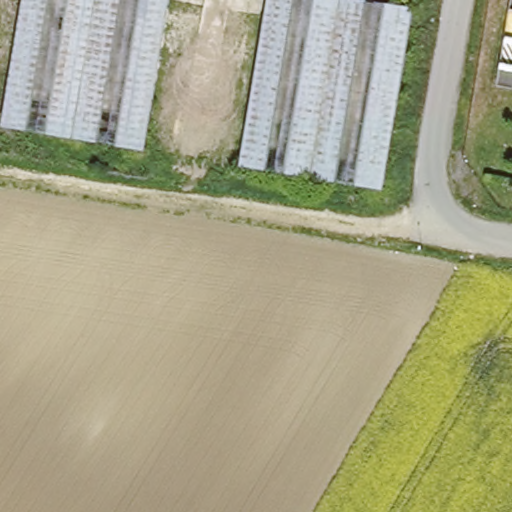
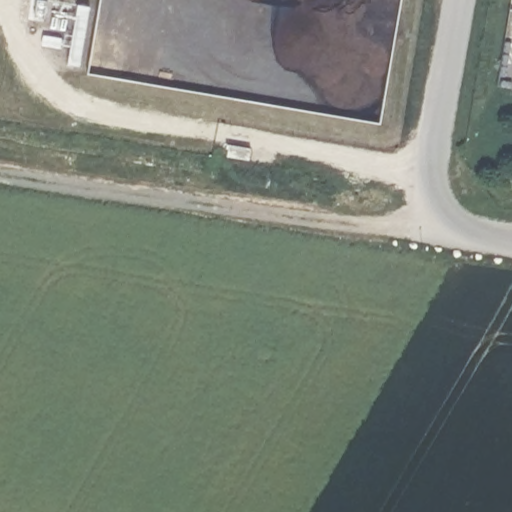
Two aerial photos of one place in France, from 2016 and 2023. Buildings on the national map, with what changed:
demolished [(144,153),(2,132),(25,0),(170,0),(144,153)]
demolished [(413,11),(384,192),(241,170),(268,0),(354,0),(413,11)]
new [(76,6),(88,8),(77,68),(65,66),(76,6)]
new [(41,36),(59,40),(58,49),(39,46),(41,36)]
new [(229,146),(251,151),(250,160),(228,157),(229,146)]

